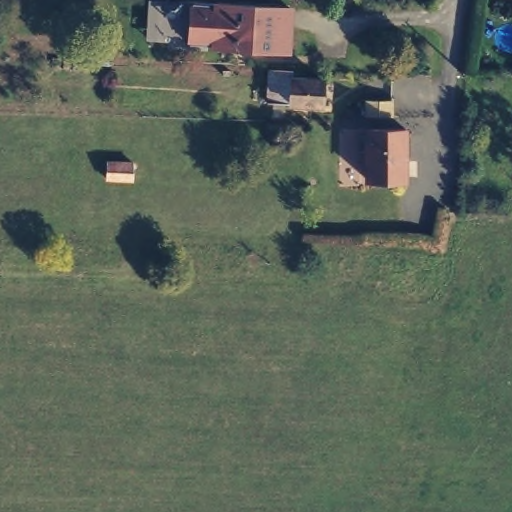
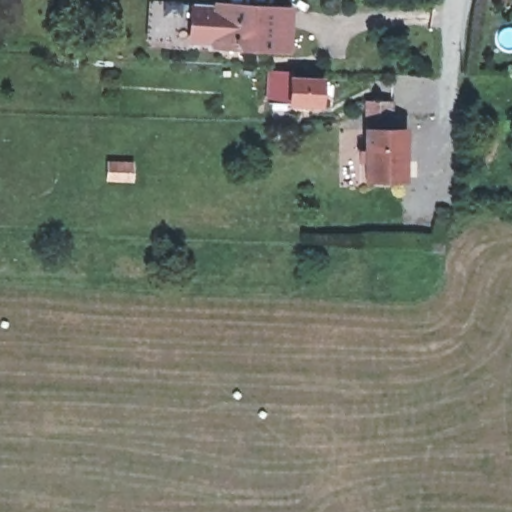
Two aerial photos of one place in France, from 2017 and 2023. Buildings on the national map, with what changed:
unchanged [(280,9),(278,49),(204,44),(206,4),(280,9)]
unchanged [(298,71),(298,78),(327,79),(326,105),(315,104),(309,104),(273,102),(275,70),(298,71)]
unchanged [(387,101),(387,115),(361,115),(361,100),(387,101)]
unchanged [(361,129),(400,129),(400,179),(361,179),(361,160),(355,160),(355,150),(361,150),(361,129)]
unchanged [(107,179),(107,163),(133,164),(133,180),(107,179)]

